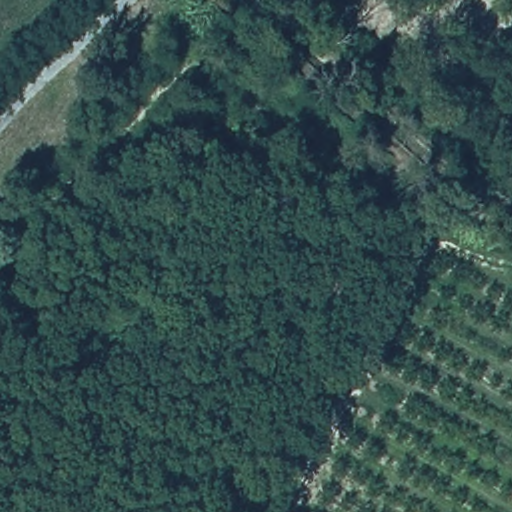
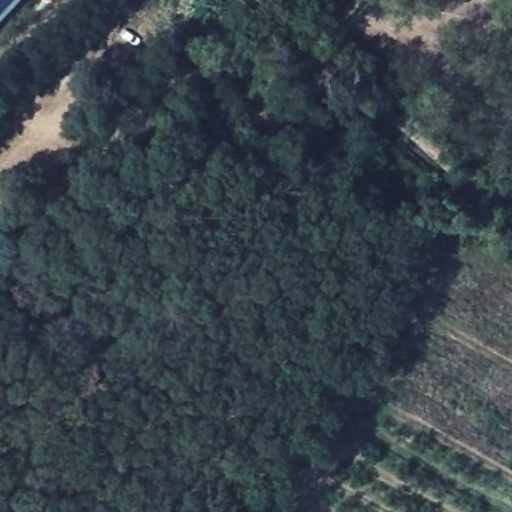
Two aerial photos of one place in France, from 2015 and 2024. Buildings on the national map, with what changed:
new [(0,22),(0,0),(21,0),(0,22)]

